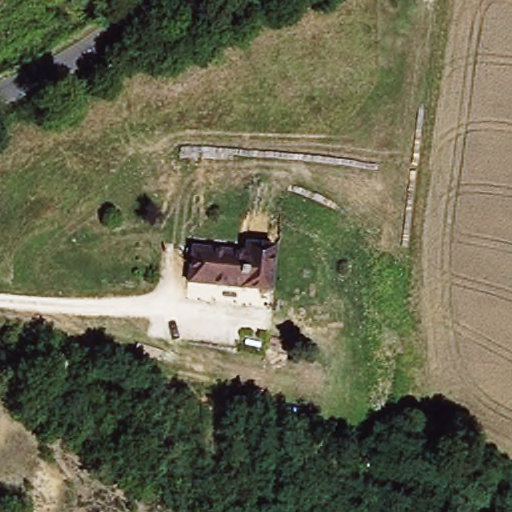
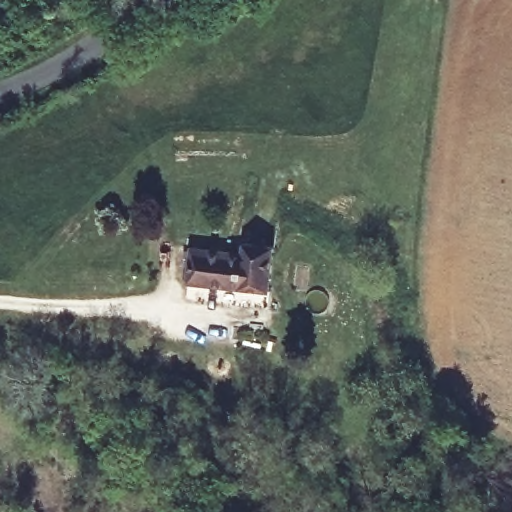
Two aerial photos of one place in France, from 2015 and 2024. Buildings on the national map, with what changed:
unchanged [(186,275),(192,243),(244,252),(245,241),(275,245),(278,245),(271,292),(262,291),(186,275)]

